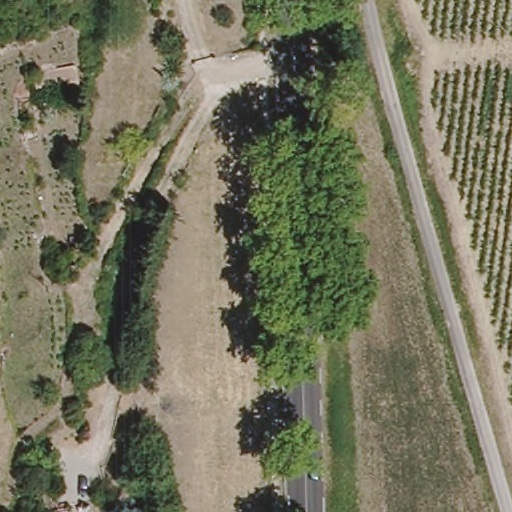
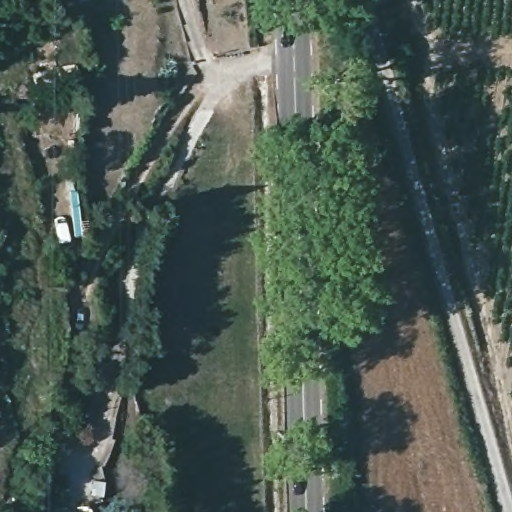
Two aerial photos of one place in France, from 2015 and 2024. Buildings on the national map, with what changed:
unchanged [(80,78),(44,85),(44,81),(36,81),(34,69),(76,60),(80,78)]
unchanged [(28,93),(13,93),(15,79),(24,73),(28,73),(28,93)]

